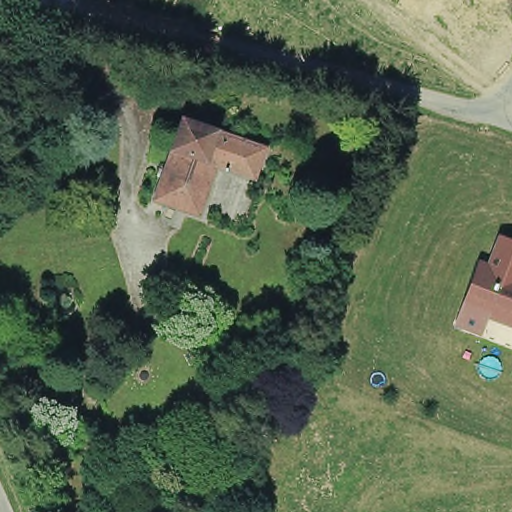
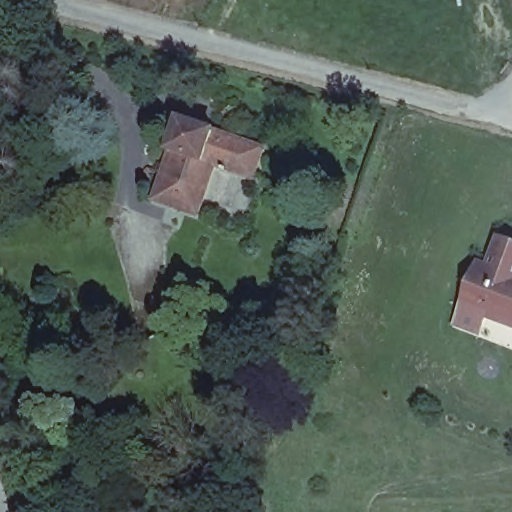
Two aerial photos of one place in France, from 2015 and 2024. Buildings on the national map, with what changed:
unchanged [(265,151),(254,181),(213,166),(196,214),(154,199),(182,122),(265,151)]
unchanged [(485,334),(456,324),(477,259),(490,262),(497,234),(512,238),(512,326),(489,319),(485,334)]

